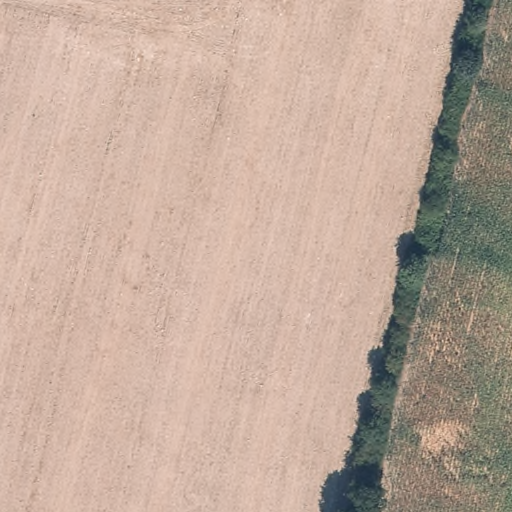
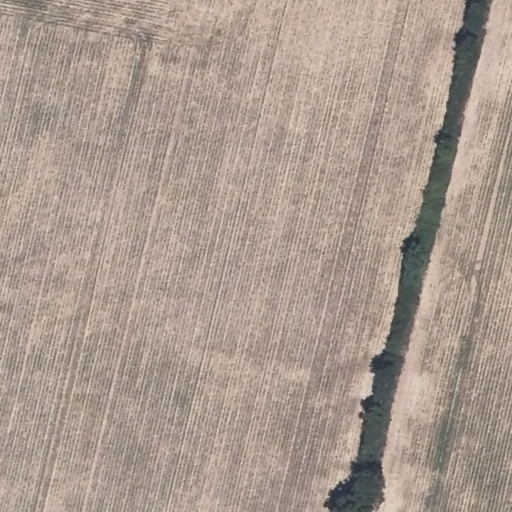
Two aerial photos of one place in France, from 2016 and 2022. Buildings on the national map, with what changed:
[]

